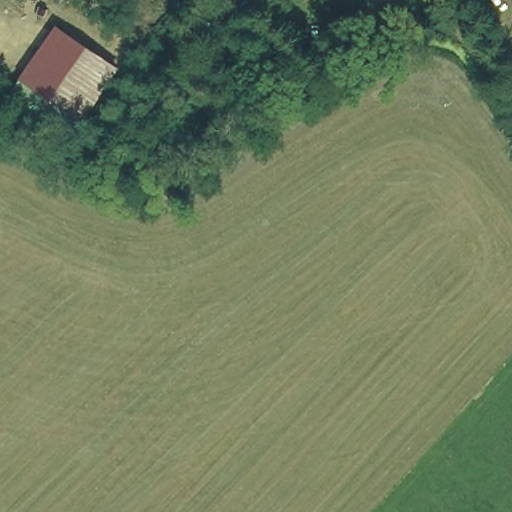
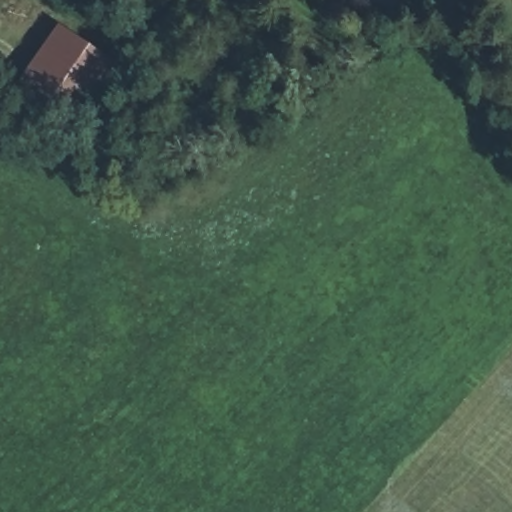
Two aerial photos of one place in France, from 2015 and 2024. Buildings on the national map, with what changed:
unchanged [(95,82),(79,105),(32,72),(44,56),(50,47),(62,30),(110,62),(97,79),(95,82)]

